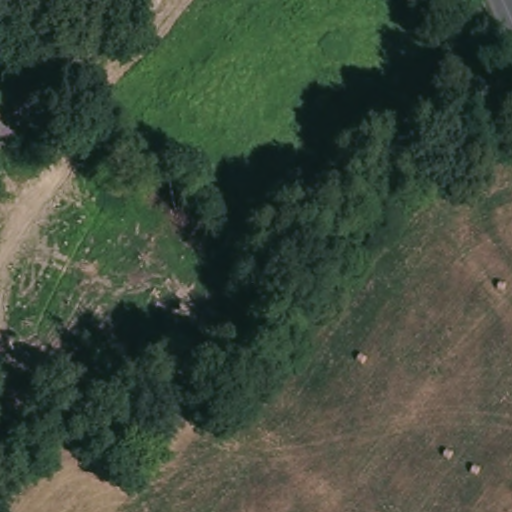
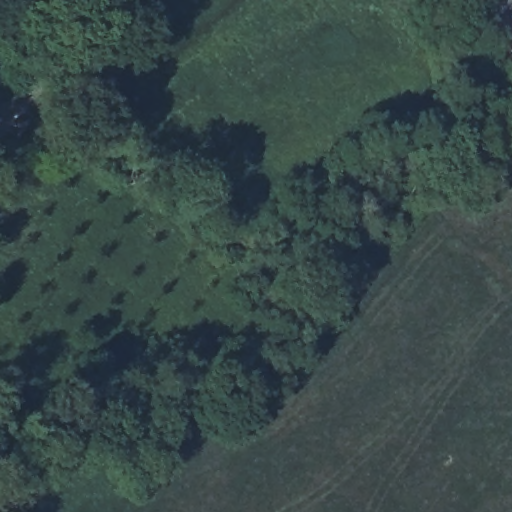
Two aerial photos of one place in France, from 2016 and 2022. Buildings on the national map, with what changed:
[]

